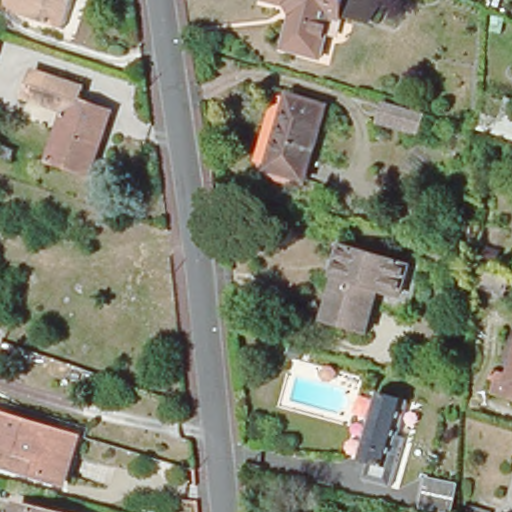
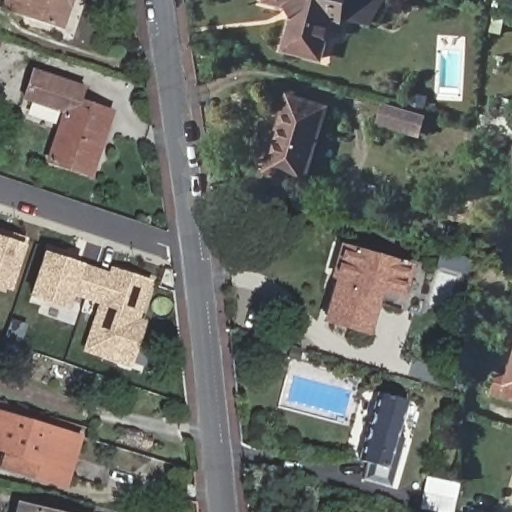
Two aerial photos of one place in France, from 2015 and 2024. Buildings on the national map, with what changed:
unchanged [(0,9),(3,0),(70,0),(61,30),(0,9)]
unchanged [(276,5),(274,4),(260,0),(339,0),(333,21),(326,19),(325,19),(322,31),(315,59),(297,54),(275,48),(276,45),(285,18),(280,10),(276,5)]
unchanged [(90,176),(48,161),(65,111),(27,98),(36,73),(84,89),(80,102),(111,113),(90,176)]
unchanged [(303,179),(265,168),(286,93),(325,104),(303,179)]
unchanged [(407,106),(422,111),(416,131),(378,119),(385,100),(407,106)]
unchanged [(512,101),(512,137),(496,133),(506,100),(512,101)]
new [(27,239),(10,288),(0,285),(0,230),(27,239)]
new [(150,279),(138,318),(145,320),(130,366),(80,349),(95,303),(70,294),(65,308),(27,295),(42,244),(150,279)]
unchanged [(340,278),(335,277),(343,247),(415,268),(407,297),(385,291),(373,333),(328,321),(340,278)]
unchanged [(469,296),(478,264),(510,273),(500,304),(469,296)]
unchanged [(494,384),(492,379),(495,372),(508,376),(512,364),(512,398),(492,392),(494,384)]
unchanged [(380,391),(411,400),(400,436),(408,438),(394,487),(365,479),(370,463),(359,460),(380,391)]
unchanged [(64,483),(4,465),(6,451),(0,448),(0,412),(77,435),(64,483)]
unchanged [(458,481),(451,507),(419,498),(426,472),(458,481)]
unchanged [(19,505),(47,512),(17,512),(19,505)]

